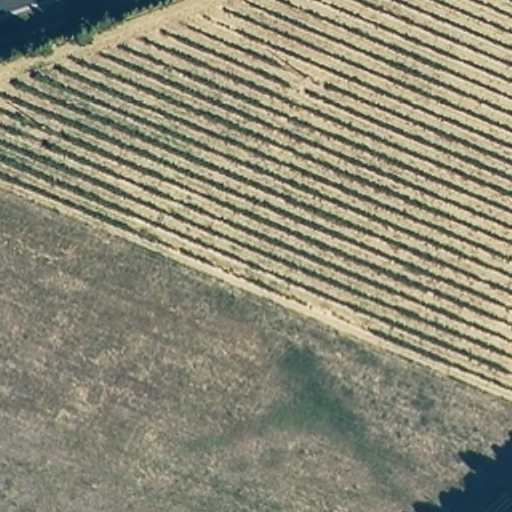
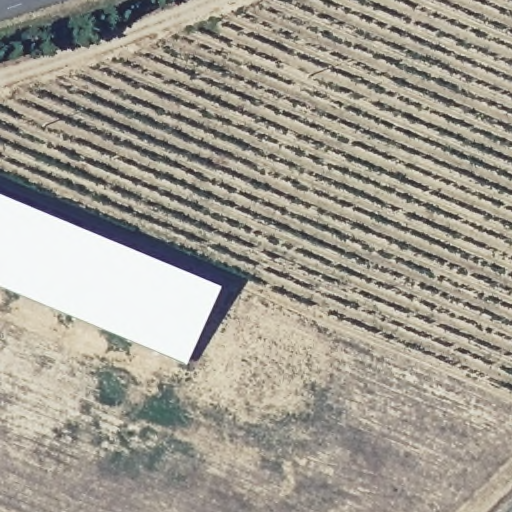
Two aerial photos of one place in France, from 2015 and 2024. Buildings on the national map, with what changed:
new [(115,252),(217,291),(185,366),(104,330),(0,287),(0,203),(29,214),(115,252)]

